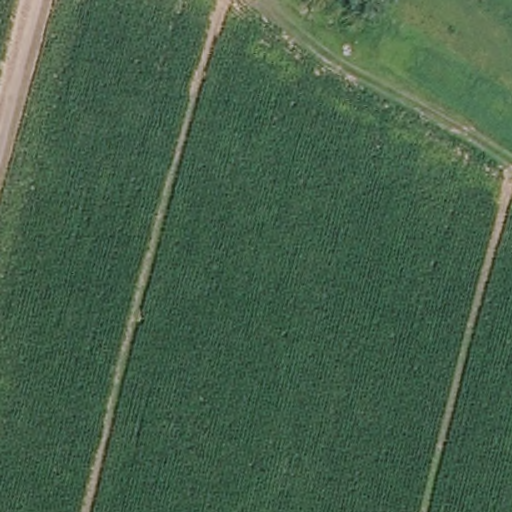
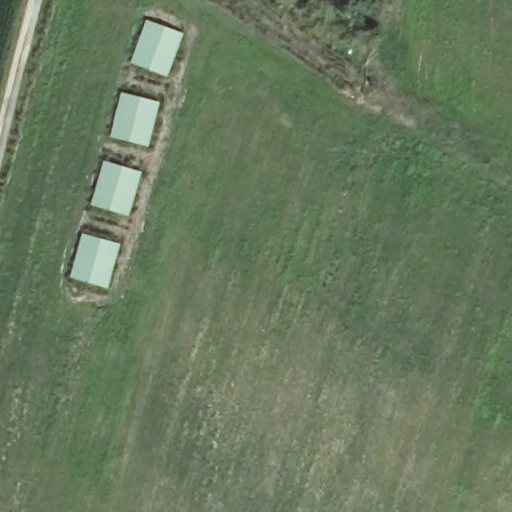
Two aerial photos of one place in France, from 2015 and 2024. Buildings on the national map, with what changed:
new [(145,19),(184,33),(168,77),(129,63),(145,19)]
new [(121,91),(160,102),(148,147),(109,136),(121,91)]
new [(103,160),(143,172),(129,216),(90,205),(103,160)]
new [(82,233),(121,243),(108,288),(70,277),(82,233)]

